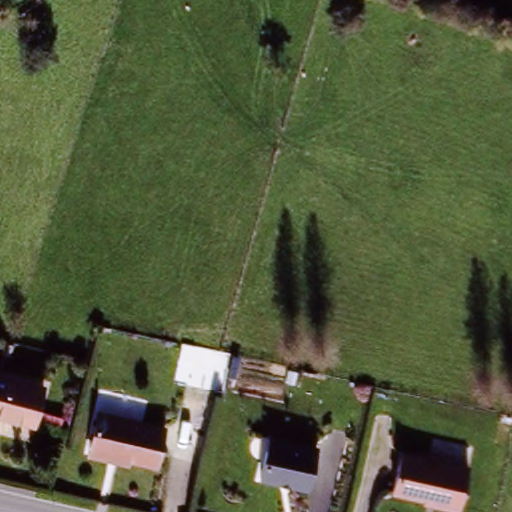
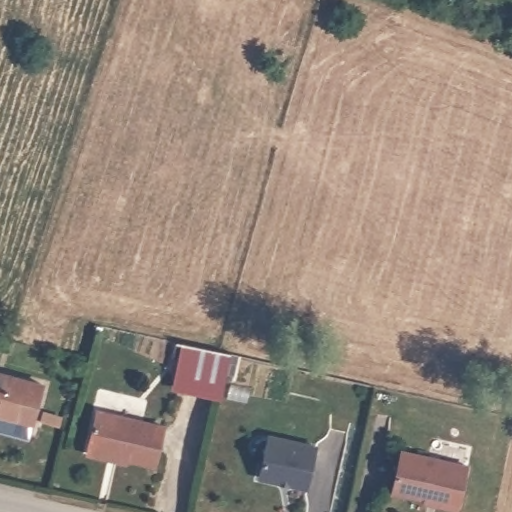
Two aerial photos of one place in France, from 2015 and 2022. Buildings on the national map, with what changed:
new [(230,354),(221,393),(172,382),(181,343),(230,354)]
unchanged [(33,421),(0,414),(0,373),(42,385),(33,421)]
unchanged [(160,467),(97,455),(105,412),(169,424),(160,467)]
unchanged [(307,487),(261,475),(272,432),(318,443),(307,487)]
unchanged [(397,492),(406,452),(472,468),(461,511),(397,492)]

